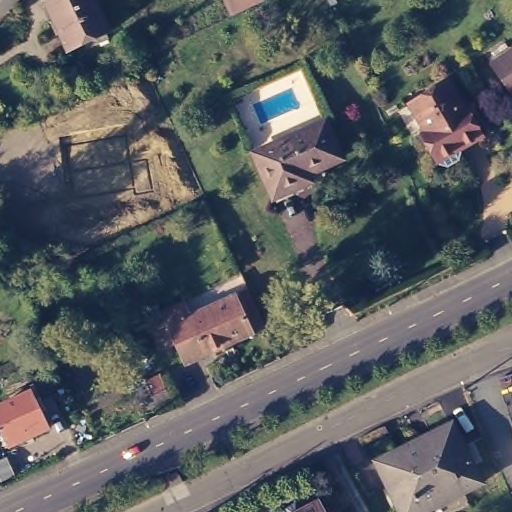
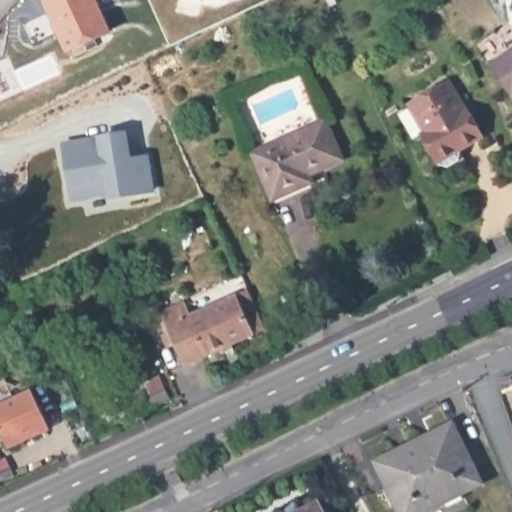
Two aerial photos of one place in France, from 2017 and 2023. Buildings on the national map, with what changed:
unchanged [(92,41),(70,51),(62,34),(57,36),(51,25),(57,22),(47,3),(54,0),(95,0),(110,34),(107,35),(110,41),(95,47),(92,41)]
demolished [(228,0),(266,0),(268,6),(236,21),(227,1),(228,0)]
unchanged [(512,51),(512,94),(492,65),(512,51)]
unchanged [(448,82),(469,118),(470,116),(482,136),(458,150),(460,153),(458,160),(447,167),(440,165),(422,135),(426,133),(410,104),(448,82)]
unchanged [(250,154),(320,123),(335,159),(300,175),(304,182),(269,197),(250,154)]
new [(155,193),(107,202),(105,195),(68,201),(58,142),(95,135),(125,130),(131,157),(148,155),(155,193)]
unchanged [(150,325),(165,318),(162,313),(183,303),(189,317),(248,290),(266,329),(232,344),(234,349),(226,352),(223,348),(186,365),(175,341),(160,347),(150,325)]
unchanged [(147,418),(135,386),(162,374),(175,403),(147,418)]
unchanged [(37,391),(55,428),(13,447),(5,430),(0,432),(0,409),(37,391)]
unchanged [(375,462),(452,424),(482,484),(424,512),(400,512),(375,462)]
unchanged [(318,507),(321,512),(309,512),(318,507)]

